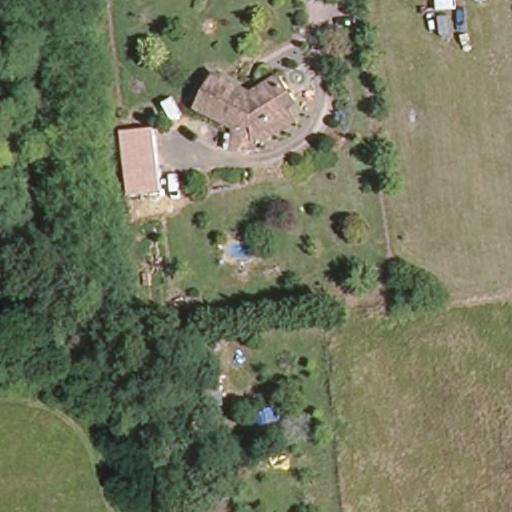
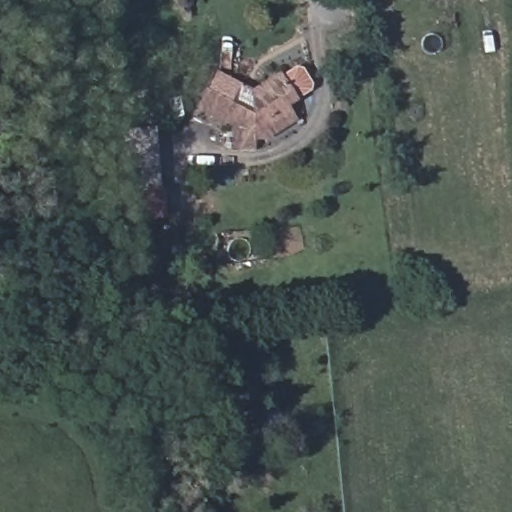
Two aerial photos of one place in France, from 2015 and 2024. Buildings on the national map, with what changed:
unchanged [(251,85),(277,68),(292,90),(283,97),(291,109),(263,127),(252,128),(252,118),(229,118),(195,101),(212,67),(251,85)]
unchanged [(155,126),(160,193),(127,195),(122,130),(155,126)]

